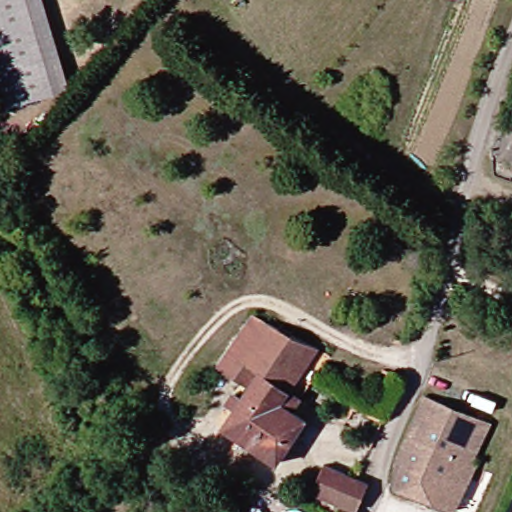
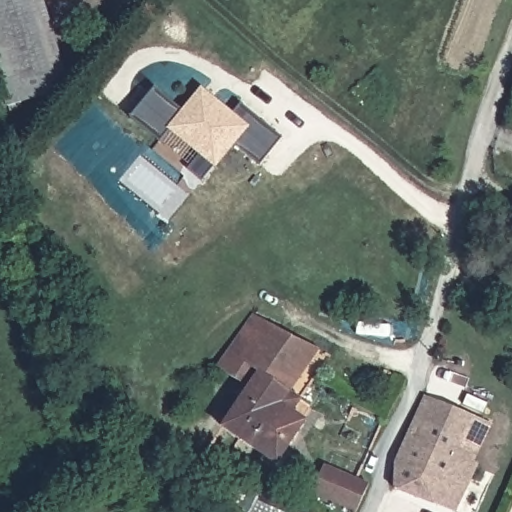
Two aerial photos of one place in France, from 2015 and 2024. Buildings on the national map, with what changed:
unchanged [(3,115),(0,104),(0,0),(27,0),(56,96),(3,115)]
new [(213,167),(202,182),(188,170),(199,156),(169,132),(160,142),(131,117),(154,89),(182,111),(201,87),(233,114),(240,105),(280,140),(260,166),(235,146),(216,169),(213,167)]
unchanged [(313,353),(287,397),(291,401),(285,412),(300,424),(273,467),(222,432),(248,393),(218,372),(254,320),(313,353)]
unchanged [(426,396),(493,426),(475,462),(482,466),(460,512),(453,512),(398,489),(395,467),(426,396)]
unchanged [(312,498),(325,467),(366,486),(354,512),(342,512),(312,498)]

